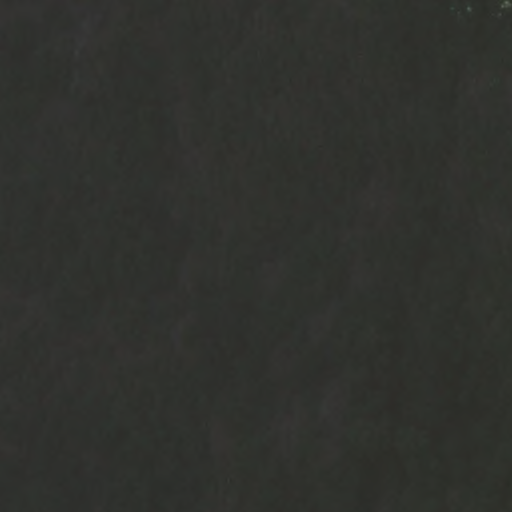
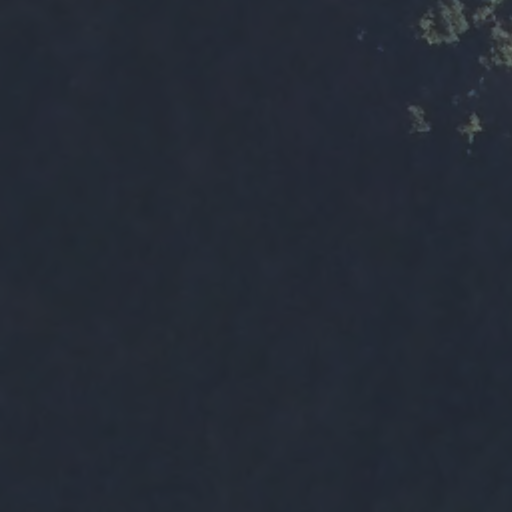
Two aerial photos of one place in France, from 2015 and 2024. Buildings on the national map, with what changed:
[]

